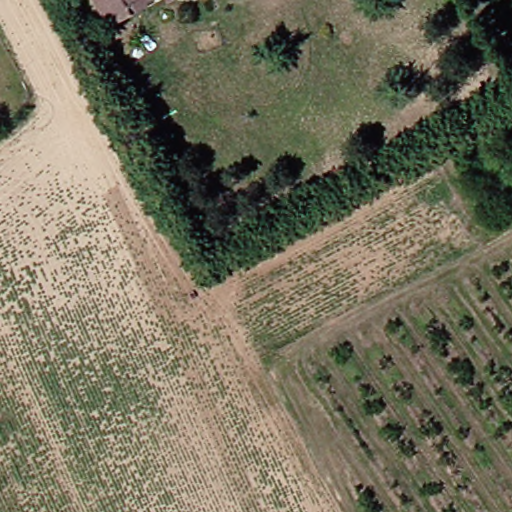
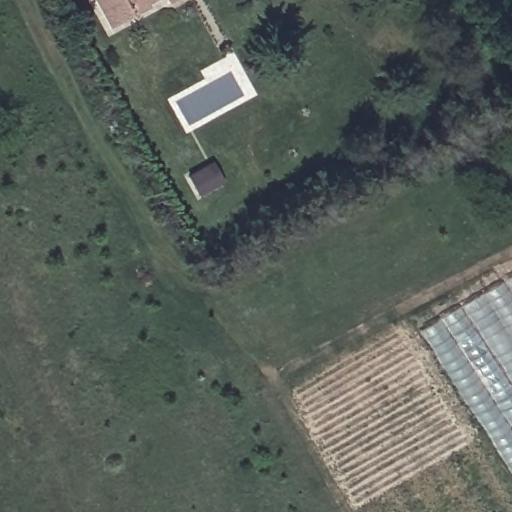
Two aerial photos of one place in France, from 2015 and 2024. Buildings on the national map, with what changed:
unchanged [(135,15),(114,27),(98,0),(126,0),(135,15)]
unchanged [(147,2),(149,8),(135,15),(126,0),(150,0),(147,2)]
unchanged [(175,6),(169,0),(184,0),(175,6)]
new [(512,479),(417,333),(512,277),(512,479)]

